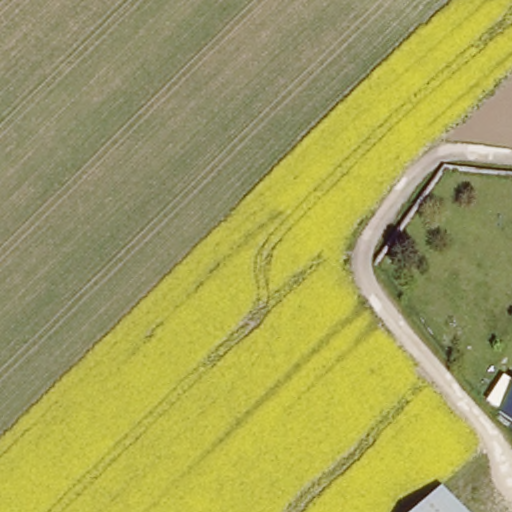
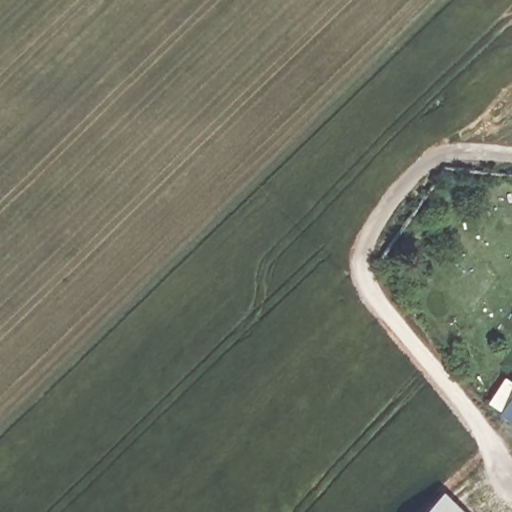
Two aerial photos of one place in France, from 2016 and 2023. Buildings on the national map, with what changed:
unchanged [(501,410),(512,392),(512,418),(501,410)]
unchanged [(462,512),(423,512),(443,492),(462,512)]

